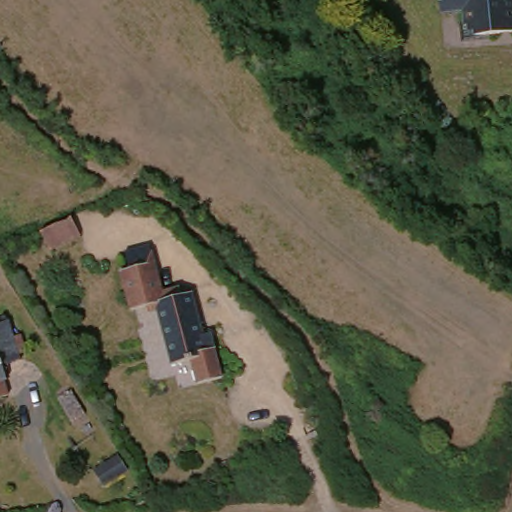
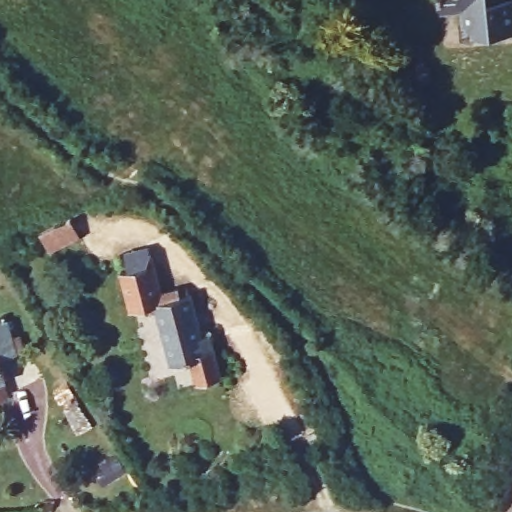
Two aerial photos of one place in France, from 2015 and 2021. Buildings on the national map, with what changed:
unchanged [(484,44),(459,45),(458,32),(457,17),(433,18),(432,0),(500,0),(501,8),(512,7),(512,38),(487,40),(484,40),(484,44)]
unchanged [(69,224),(78,246),(44,256),(37,235),(69,224)]
unchanged [(168,373),(153,318),(141,321),(138,314),(126,319),(114,281),(123,279),(119,262),(143,256),(149,284),(158,282),(166,302),(189,297),(201,343),(209,341),(218,373),(222,386),(194,392),(192,384),(188,367),(168,373)]
unchanged [(17,365),(1,370),(4,383),(1,384),(6,401),(0,402),(0,331),(5,329),(17,365)]

